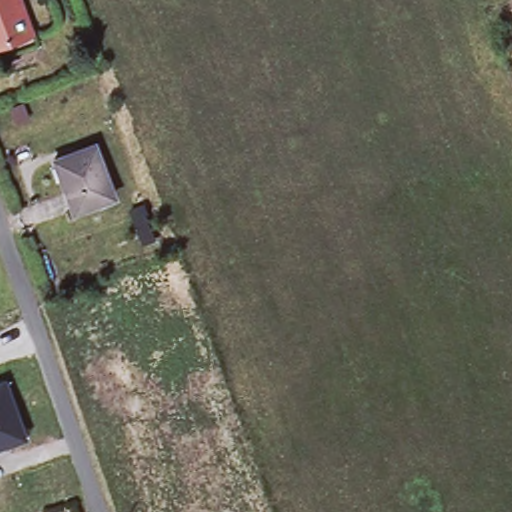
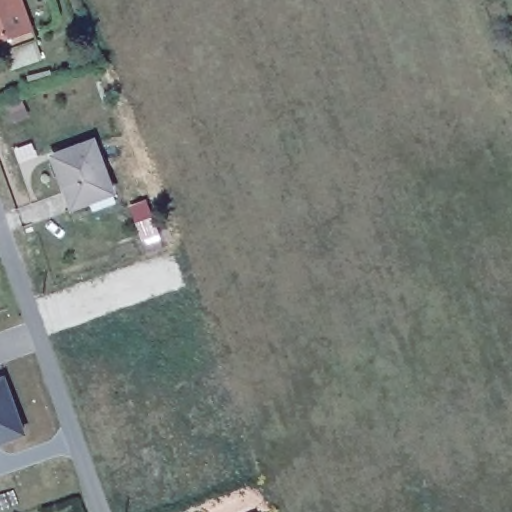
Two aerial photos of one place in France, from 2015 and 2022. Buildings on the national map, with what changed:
unchanged [(2,54),(0,55),(0,0),(12,0),(23,30),(28,28),(33,41),(2,54)]
unchanged [(55,156),(96,141),(114,191),(73,206),(55,156)]
unchanged [(3,377),(22,433),(0,440),(0,378),(3,377)]

